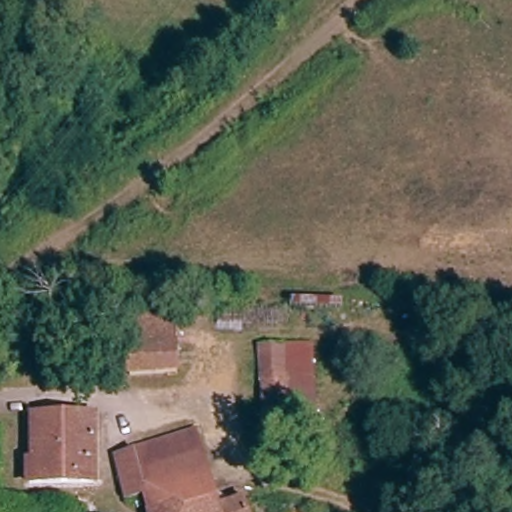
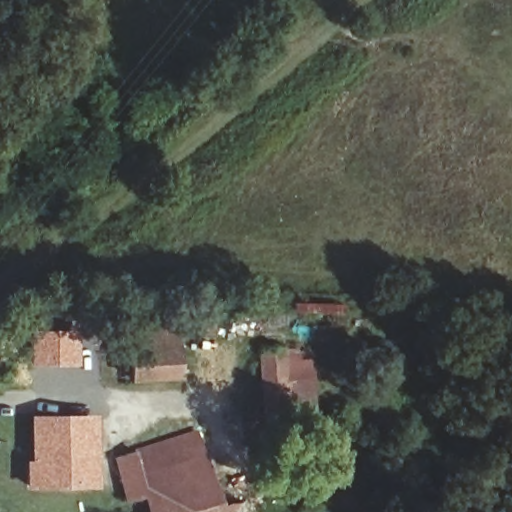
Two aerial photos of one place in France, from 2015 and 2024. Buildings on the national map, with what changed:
unchanged [(127,317),(175,315),(177,355),(131,357),(127,317)]
new [(34,331),(66,331),(66,336),(77,336),(77,366),(34,366),(34,331)]
unchanged [(312,348),(316,417),(293,420),(287,349),(312,348)]
unchanged [(293,420),(273,421),(267,350),(287,349),(293,420)]
unchanged [(180,384),(132,385),(131,357),(177,355),(180,384)]
unchanged [(27,489),(28,468),(34,467),(35,417),(60,417),(94,417),(94,430),(93,489),(27,489)]
unchanged [(251,502),(254,512),(150,512),(147,502),(132,506),(119,463),(201,437),(222,510),(251,502)]

